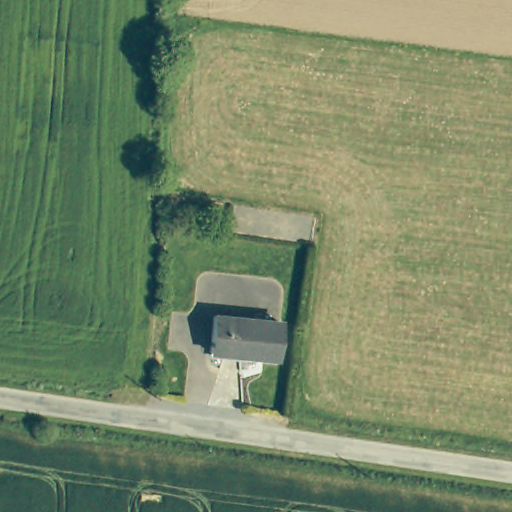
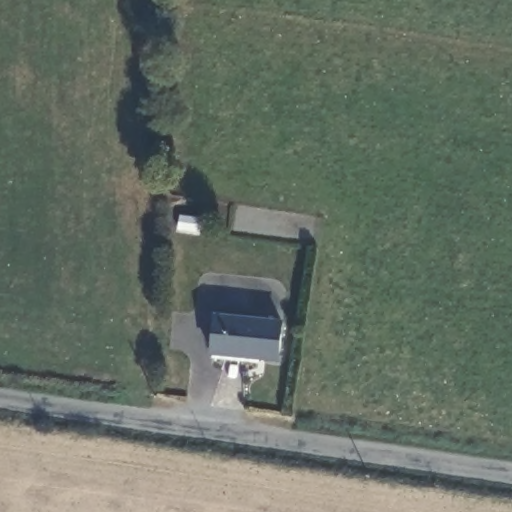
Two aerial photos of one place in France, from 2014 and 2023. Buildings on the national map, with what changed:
unchanged [(282,322),(277,361),(211,354),(215,316),(282,322)]

